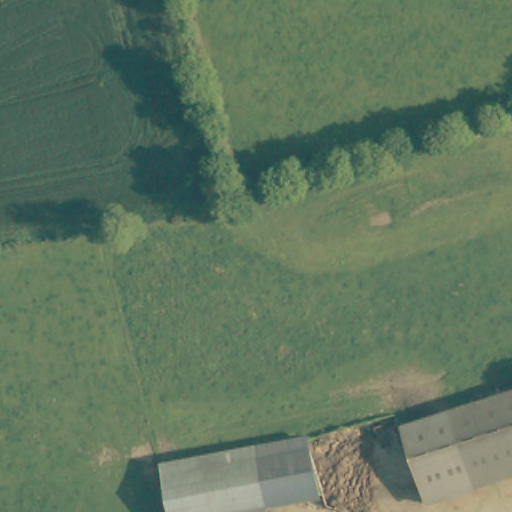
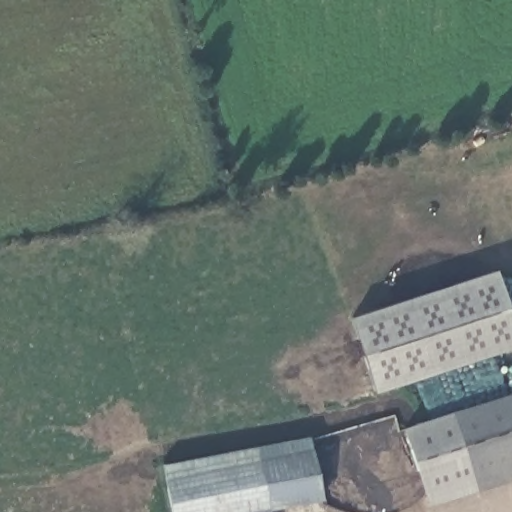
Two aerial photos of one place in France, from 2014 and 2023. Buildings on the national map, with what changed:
new [(355,313),(501,266),(512,299),(512,346),(381,390),(355,313)]
unchanged [(489,400),(512,392),(512,432),(500,436),(489,400)]
unchanged [(407,427),(489,400),(500,436),(418,461),(407,427)]
unchanged [(512,432),(512,471),(500,436),(512,432)]
unchanged [(512,471),(512,481),(434,506),(418,461),(500,436),(512,471)]
unchanged [(261,446),(313,437),(320,470),(325,488),(272,500),(267,475),(261,446)]
unchanged [(261,446),(267,475),(272,500),(275,512),(177,512),(171,485),(167,465),(261,446)]

